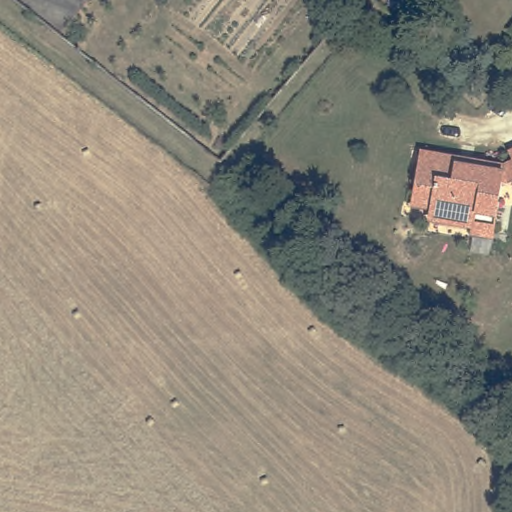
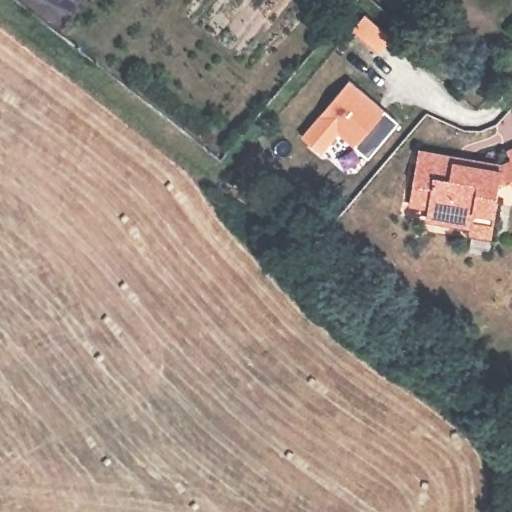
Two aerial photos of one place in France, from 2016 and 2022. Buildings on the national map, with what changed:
unchanged [(395,56),(394,69),(373,67),(372,54),(395,56)]
new [(380,111),(376,116),(383,122),(387,117),(402,128),(372,165),(342,140),(325,160),(305,144),(352,87),(380,111)]
unchanged [(512,160),(512,185),(511,185),(502,184),(498,195),(500,196),(494,227),(476,224),(477,216),(433,207),(434,200),(417,196),(427,147),(503,162),(512,160)]

